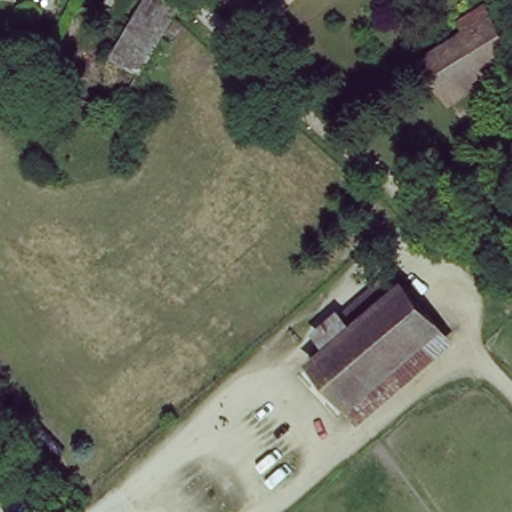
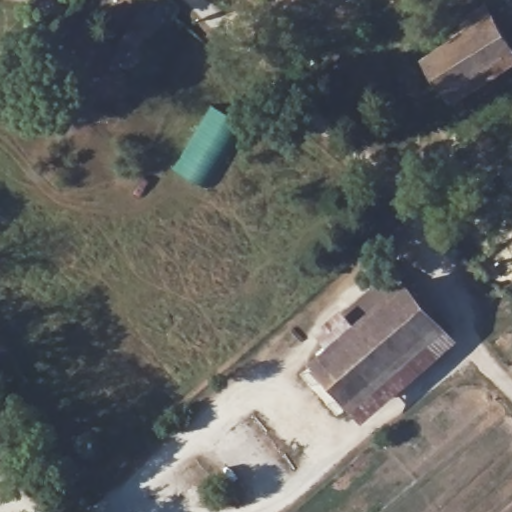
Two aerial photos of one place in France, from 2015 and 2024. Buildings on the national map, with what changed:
unchanged [(181,9),(142,71),(120,56),(154,0),(171,0),(181,9)]
unchanged [(512,64),(449,99),(430,62),(471,38),(465,27),(490,14),(512,52),(512,64)]
new [(177,170),(213,106),(245,125),(207,188),(177,170)]
unchanged [(322,363),(410,289),(444,328),(358,407),(322,363)]

